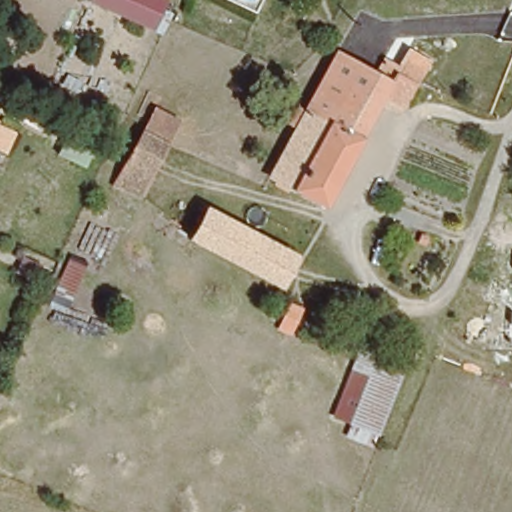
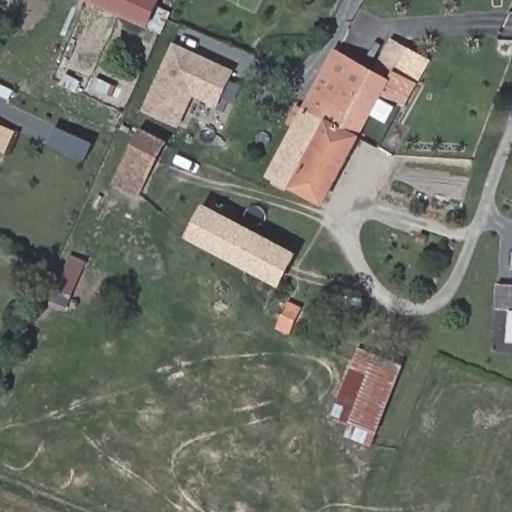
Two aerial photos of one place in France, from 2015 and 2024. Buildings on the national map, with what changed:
unchanged [(157,0),(147,20),(101,0),(157,0)]
new [(234,69),(217,107),(193,97),(179,127),(142,111),(175,42),(234,69)]
unchanged [(376,70),(385,58),(387,56),(401,63),(412,46),(433,59),(418,84),(406,104),(385,92),(326,200),(276,173),(285,156),(302,125),(296,122),(307,103),(313,106),(343,52),(376,70)]
new [(19,130),(7,154),(0,151),(0,122),(19,130)]
unchanged [(147,134),(170,148),(139,198),(117,184),(147,134)]
unchanged [(207,208),(293,253),(277,282),(191,236),(207,208)]
new [(512,310),(512,342),(510,341),(512,310)]
unchanged [(335,409),(357,357),(362,347),(404,365),(400,377),(381,426),(335,409)]

